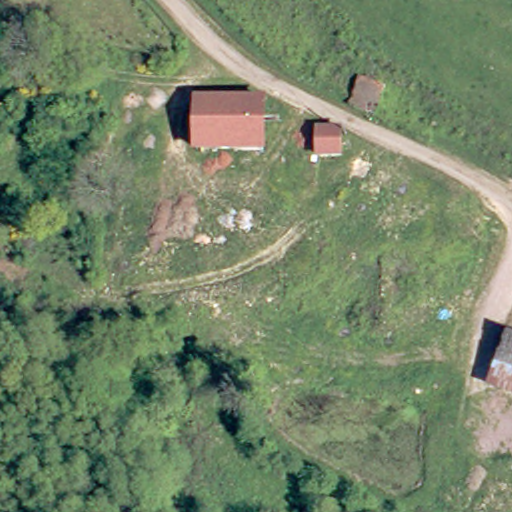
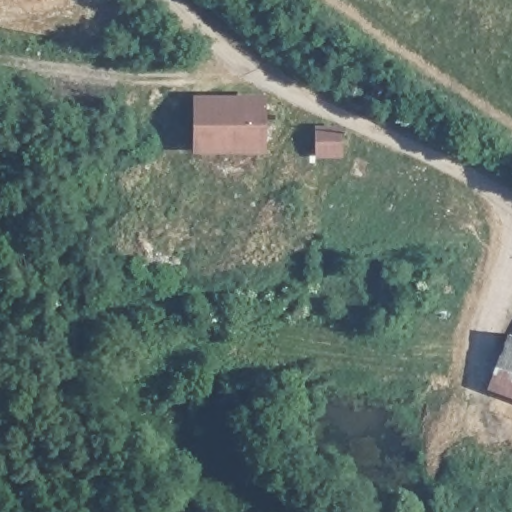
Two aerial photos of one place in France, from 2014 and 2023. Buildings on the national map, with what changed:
unchanged [(390,88),(377,116),(350,103),(362,75),(390,88)]
unchanged [(265,102),(266,153),(205,154),(200,153),(199,100),(265,102)]
unchanged [(343,130),(345,158),(319,159),(317,132),(343,130)]
unchanged [(501,366),(511,334),(512,334),(512,397),(494,391),(501,366)]

